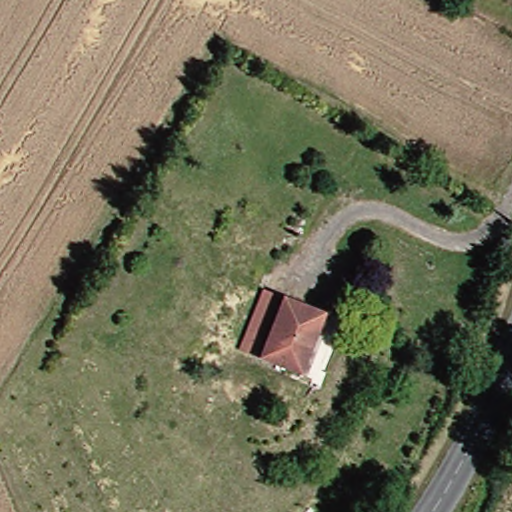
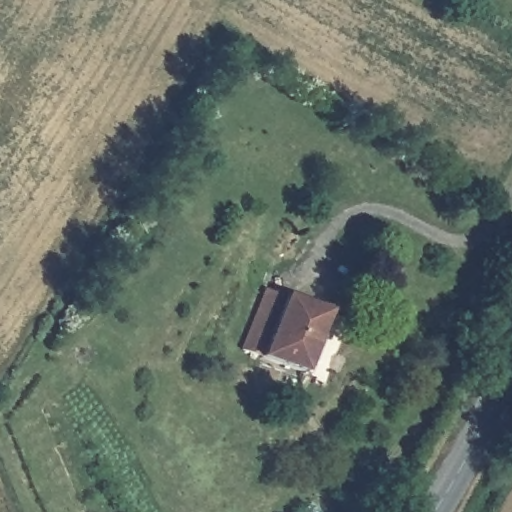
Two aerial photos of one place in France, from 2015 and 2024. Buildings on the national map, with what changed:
unchanged [(284,294),(325,313),(300,373),(258,355),(284,294)]

